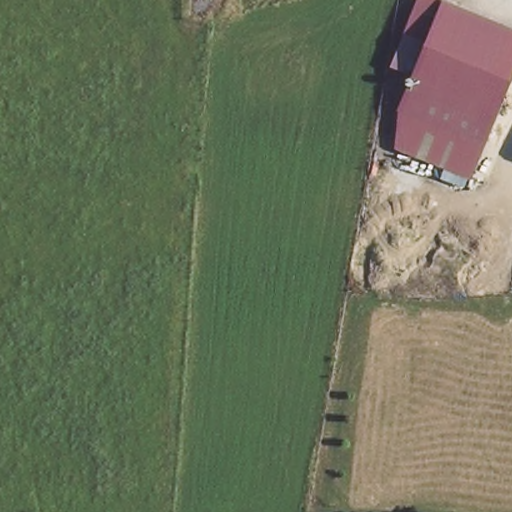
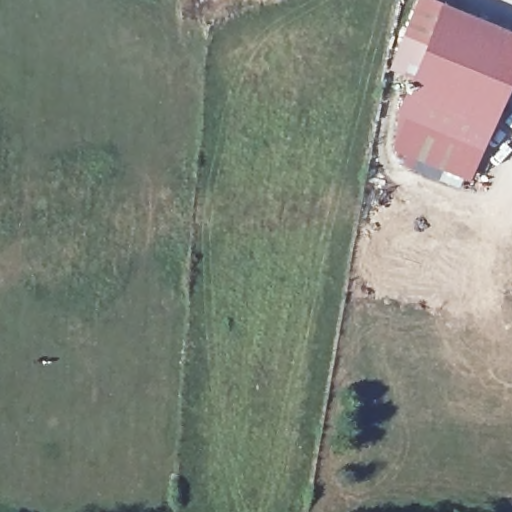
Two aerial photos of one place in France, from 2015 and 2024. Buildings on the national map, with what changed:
unchanged [(412,0),(430,0),(435,1),(431,13),(409,77),(386,69),(412,0)]
unchanged [(489,33),(441,165),(379,144),(385,111),(409,77),(431,13),(489,33)]
unchanged [(489,33),(512,43),(512,62),(466,175),(441,165),(489,33)]

